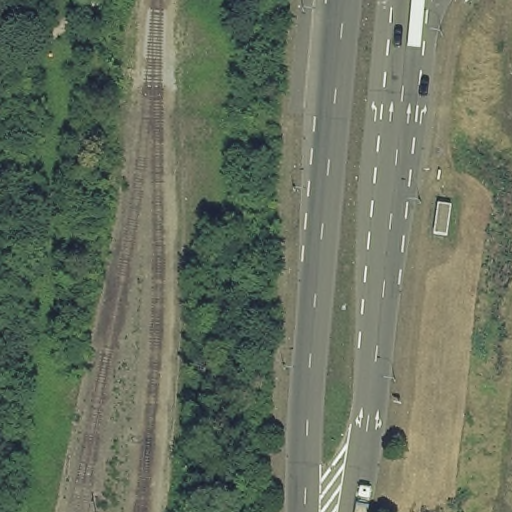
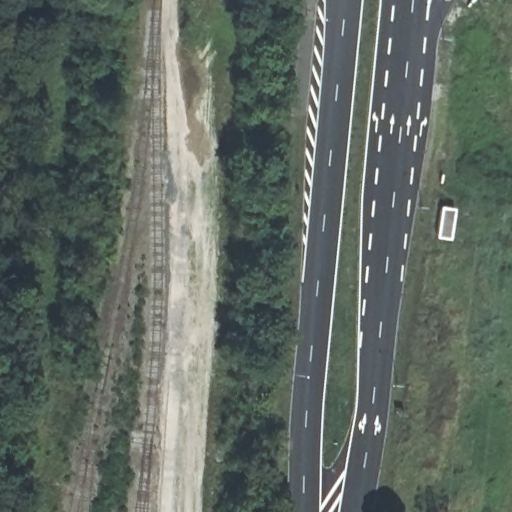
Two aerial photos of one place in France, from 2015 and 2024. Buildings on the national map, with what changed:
unchanged [(439,208),(452,209),(448,239),(436,237),(439,208)]

